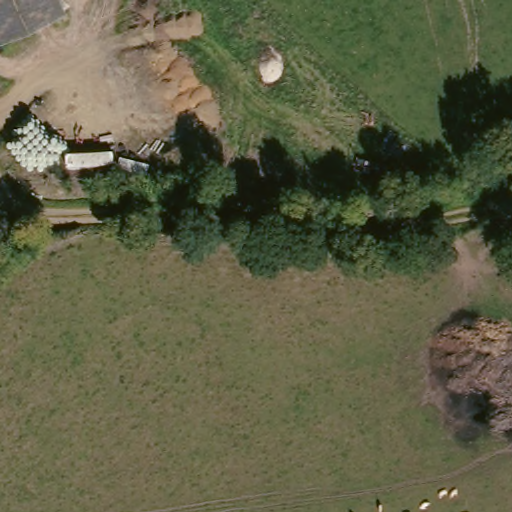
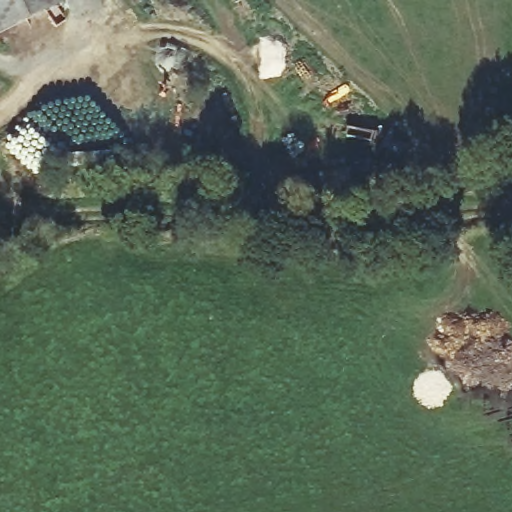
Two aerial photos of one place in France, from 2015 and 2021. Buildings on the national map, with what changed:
unchanged [(58,0),(0,28),(0,0),(58,0)]

